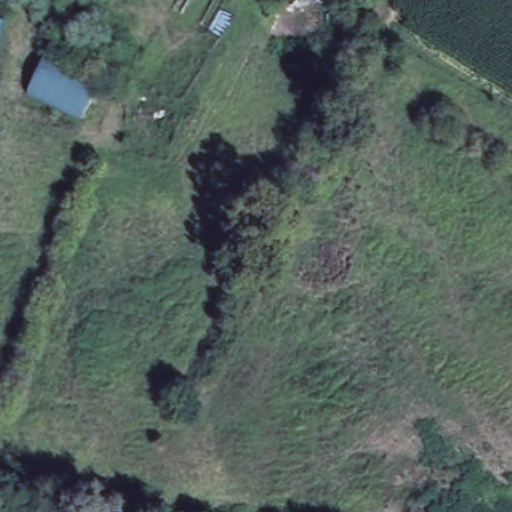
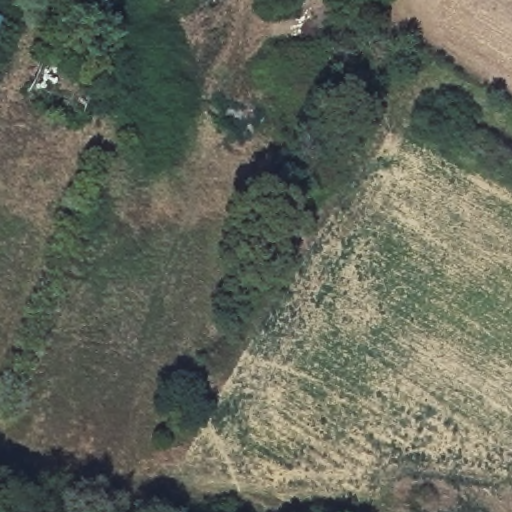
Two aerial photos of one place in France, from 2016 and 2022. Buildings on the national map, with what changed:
unchanged [(290,2),(289,0),(304,0),(290,2)]
unchanged [(0,48),(0,15),(11,19),(0,48)]
unchanged [(101,79),(85,118),(31,92),(48,54),(101,79)]

